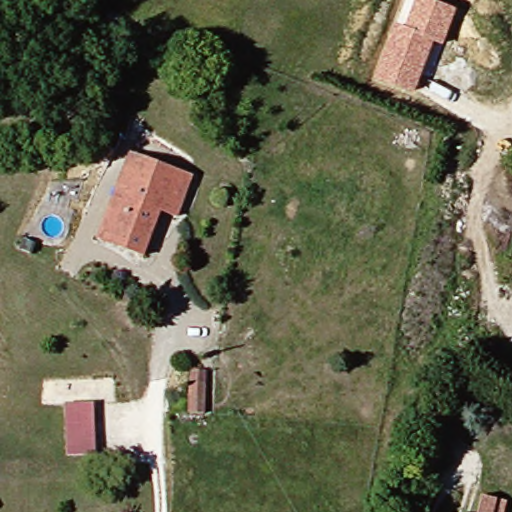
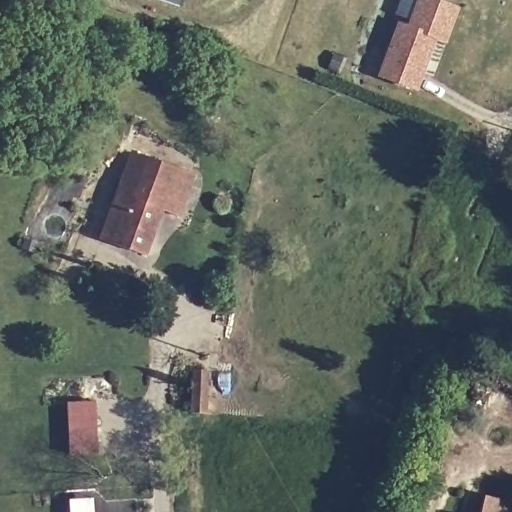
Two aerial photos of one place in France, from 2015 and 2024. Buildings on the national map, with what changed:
new [(180,5),(167,0),(182,0),(180,5)]
unchanged [(455,7),(442,46),(433,42),(415,91),(375,75),(395,22),(405,25),(415,0),(436,0),(455,7)]
unchanged [(192,178),(179,222),(162,214),(143,263),(98,245),(130,168),(139,173),(145,157),(192,178)]
unchanged [(215,371),(212,419),(195,419),(195,369),(215,371)]
unchanged [(100,401),(99,453),(70,451),(71,399),(100,401)]
unchanged [(510,499),(507,512),(478,512),(481,493),(510,499)]

